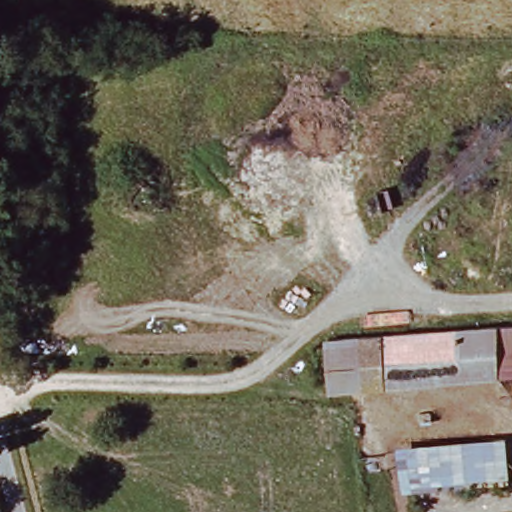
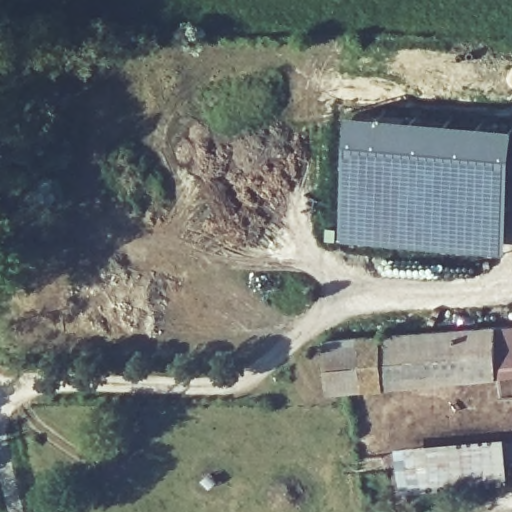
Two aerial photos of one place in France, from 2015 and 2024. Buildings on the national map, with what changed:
new [(512,187),(506,254),(339,240),(350,112),(512,125),(512,187)]
unchanged [(505,373),(499,323),(511,322),(512,322),(512,374),(505,375),(505,373)]
unchanged [(342,393),(336,343),(463,328),(499,323),(505,373),(342,393)]
unchanged [(401,493),(396,448),(505,439),(508,482),(401,493)]

